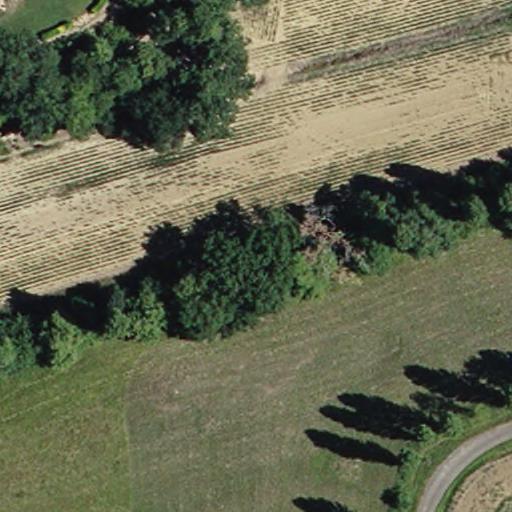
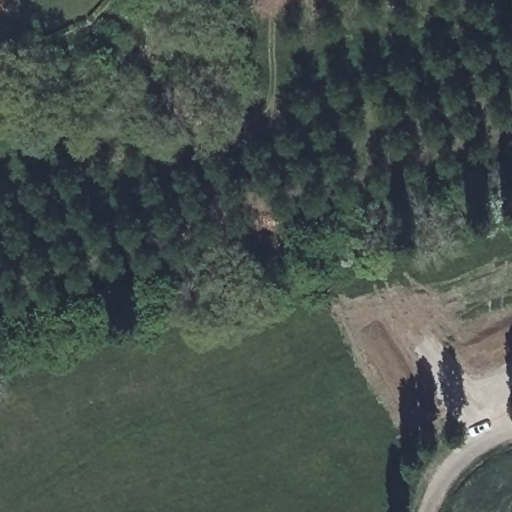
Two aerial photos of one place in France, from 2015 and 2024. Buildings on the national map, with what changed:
unchanged [(0,7),(0,0),(5,0),(7,5),(0,7)]

